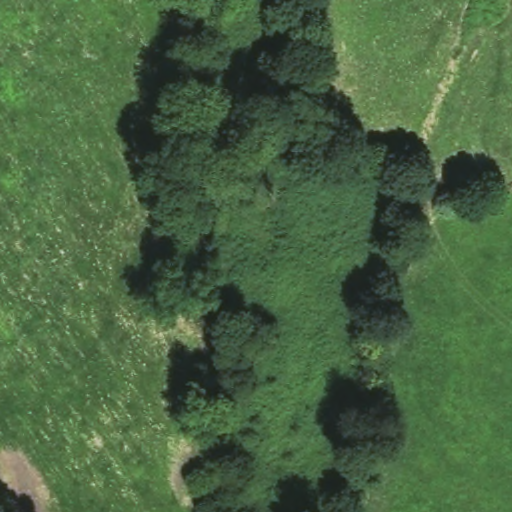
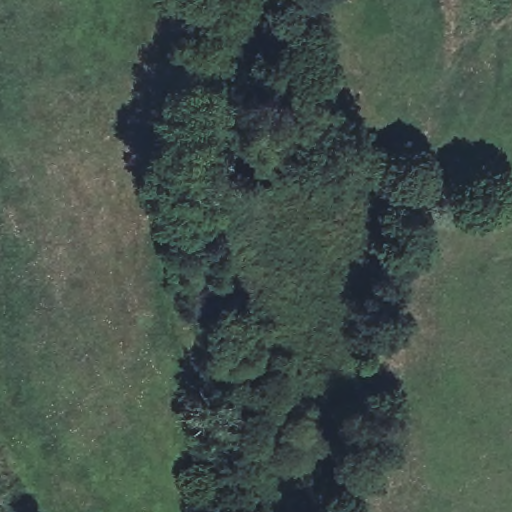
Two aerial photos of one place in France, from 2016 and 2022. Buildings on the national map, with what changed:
[]

